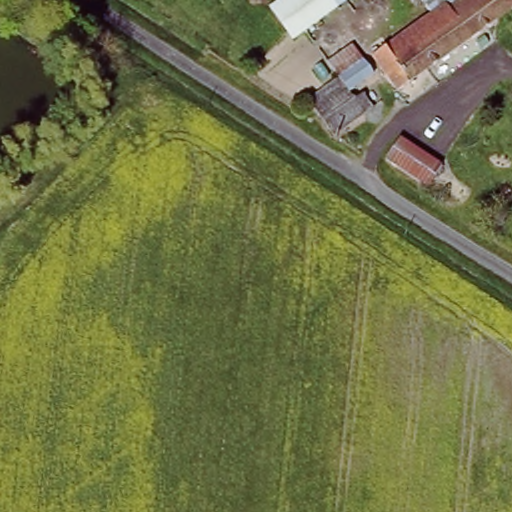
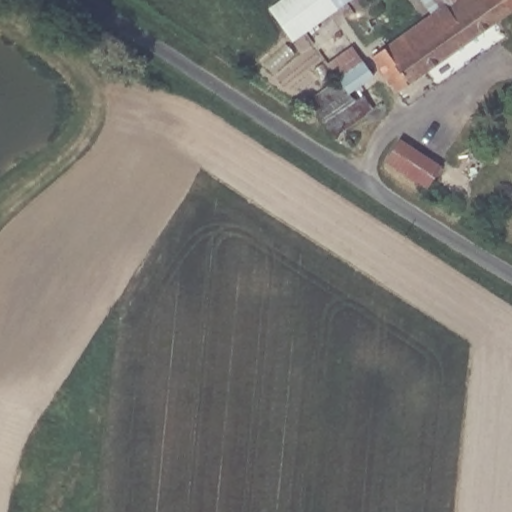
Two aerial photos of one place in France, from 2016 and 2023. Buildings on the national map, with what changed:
unchanged [(265,10),(279,0),(344,0),(288,40),(265,10)]
unchanged [(356,0),(362,0),(358,2),(356,0)]
unchanged [(445,0),(447,2),(451,0),(478,0),(492,17),(393,87),(369,52),(420,15),(441,0),(445,0)]
unchanged [(409,0),(441,0),(420,15),(409,0)]
unchanged [(445,0),(451,0),(447,2),(445,0)]
unchanged [(478,0),(512,0),(512,2),(492,17),(478,0)]
unchanged [(335,76),(324,60),(348,42),(370,71),(345,90),(351,96),(359,91),(369,104),(330,132),(305,97),(335,76)]
unchanged [(441,167),(427,188),(385,160),(400,140),(441,167)]

